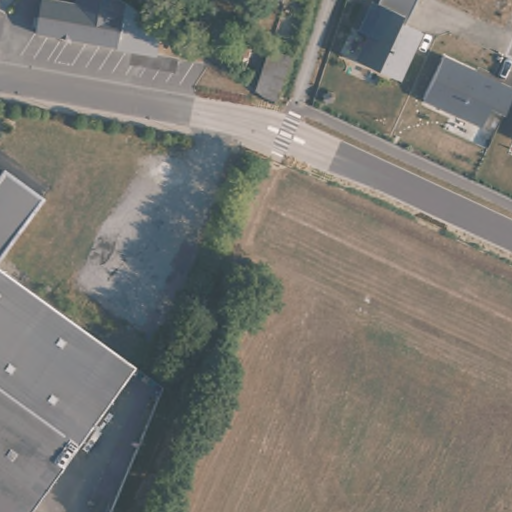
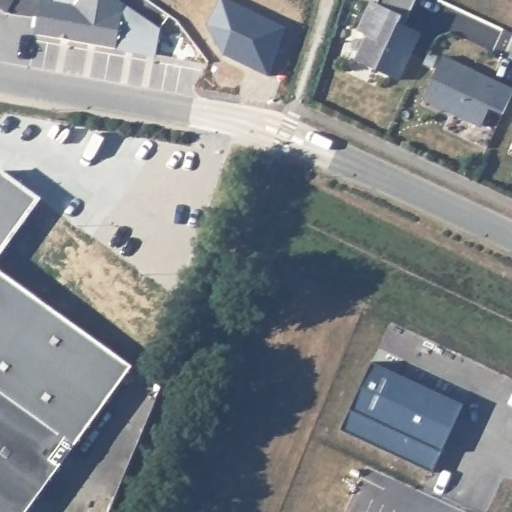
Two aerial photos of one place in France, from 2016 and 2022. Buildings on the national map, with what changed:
unchanged [(42,0),(77,3),(77,0),(117,0),(125,5),(119,48),(75,41),(38,36),(39,28),(42,0)]
unchanged [(422,35),(401,81),(356,59),(367,36),(358,32),(372,2),(367,0),(416,0),(405,27),(422,35)]
unchanged [(257,92),(270,51),(292,58),(290,62),(276,108),(257,92)]
unchanged [(502,115),(491,110),(482,128),(424,99),(444,55),(512,89),(512,93),(502,115)]
unchanged [(41,198),(0,255),(0,175),(2,171),(41,198)]
unchanged [(29,512),(0,512),(0,270),(22,285),(134,366),(29,512)]
new [(373,359),(465,402),(433,471),(341,428),(373,359)]

